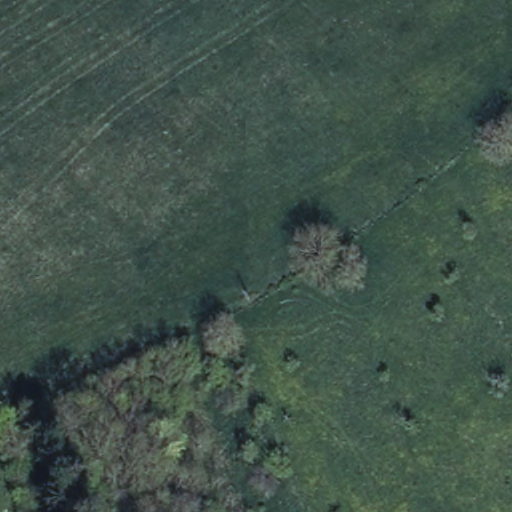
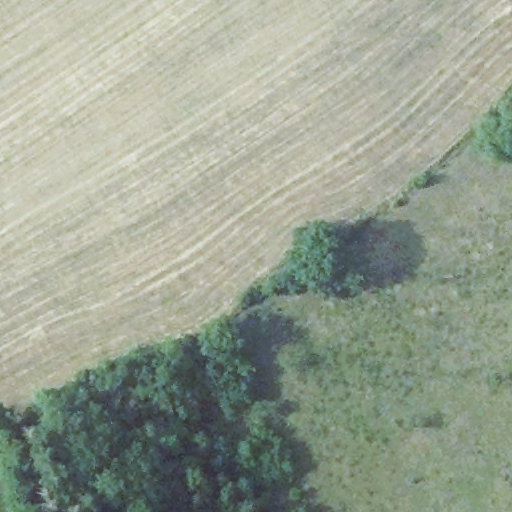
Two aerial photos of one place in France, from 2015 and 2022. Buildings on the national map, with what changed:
[]

